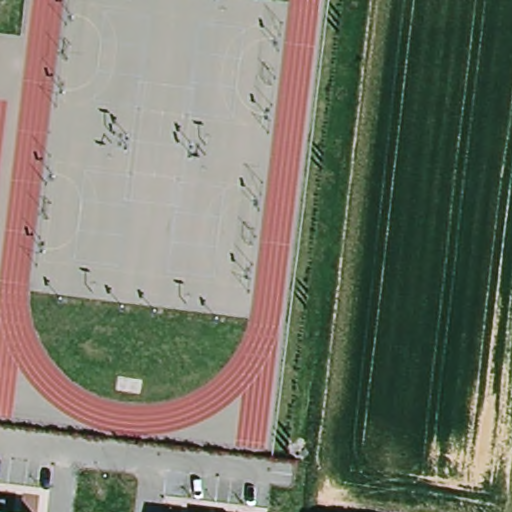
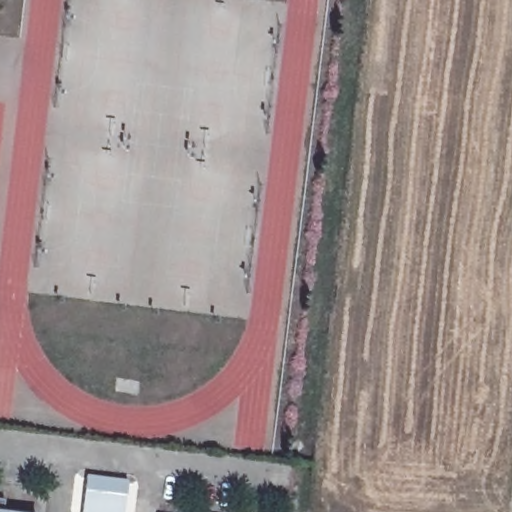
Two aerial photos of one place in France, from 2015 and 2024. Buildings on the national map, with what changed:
new [(124,512),(81,512),(85,474),(128,480),(124,512)]
unchanged [(0,497),(5,498),(5,509),(23,512),(0,512),(0,497)]

